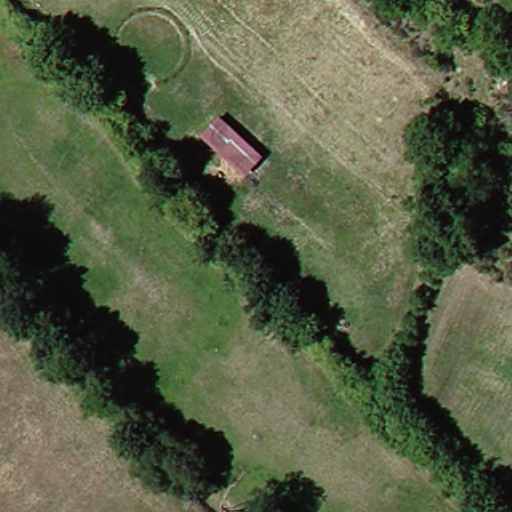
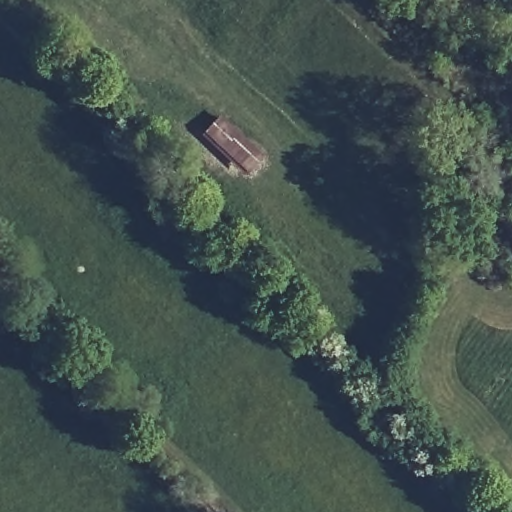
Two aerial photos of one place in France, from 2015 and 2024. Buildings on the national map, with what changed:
unchanged [(221,114),(265,155),(248,173),(203,134),(221,114)]

